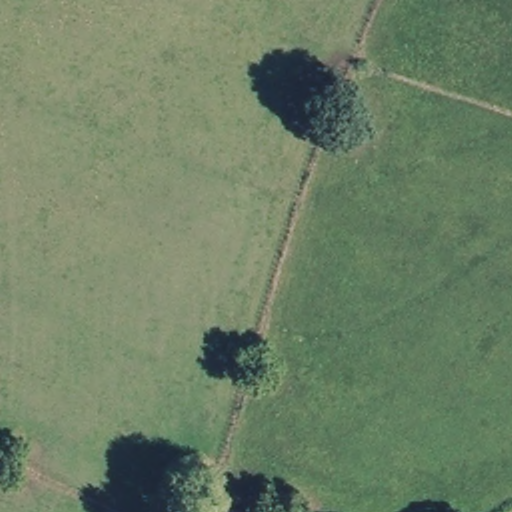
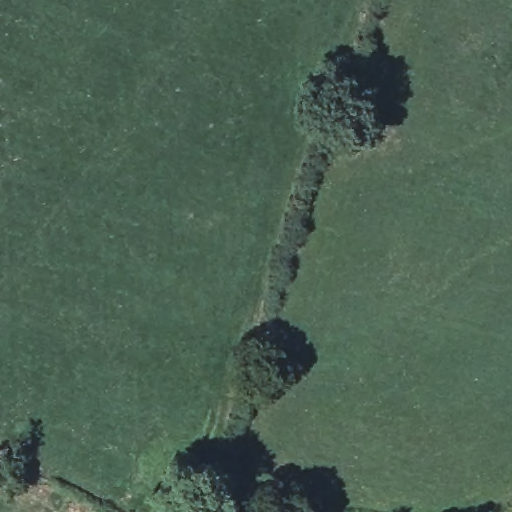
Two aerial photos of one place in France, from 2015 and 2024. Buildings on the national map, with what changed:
unchanged [(227,512),(202,512),(206,504),(227,512)]

